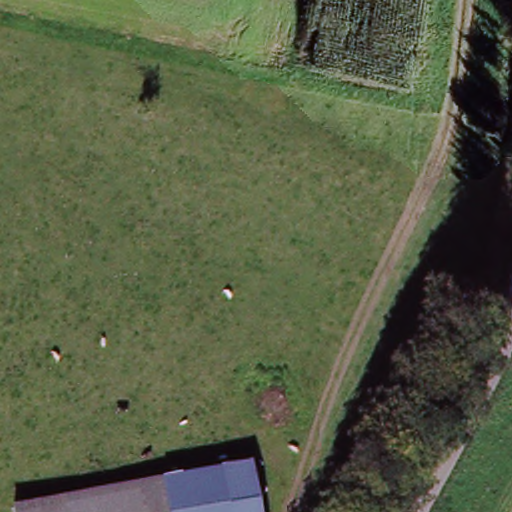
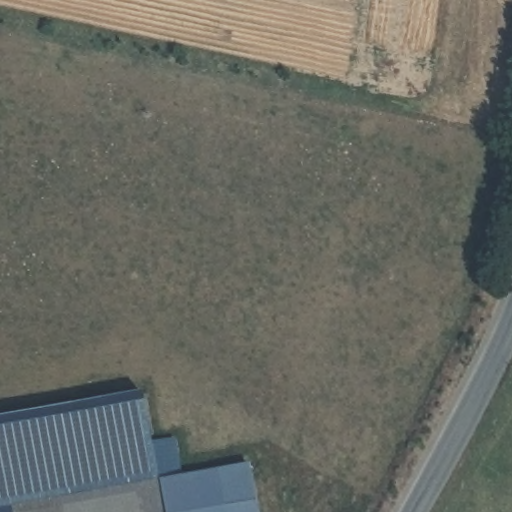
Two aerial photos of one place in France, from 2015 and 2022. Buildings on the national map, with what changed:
new [(30,512),(12,512),(11,509),(0,511),(0,421),(145,394),(161,485),(137,490),(30,512)]
unchanged [(252,467),(260,512),(193,512),(186,480),(252,467)]
unchanged [(186,480),(193,512),(30,512),(186,480)]

